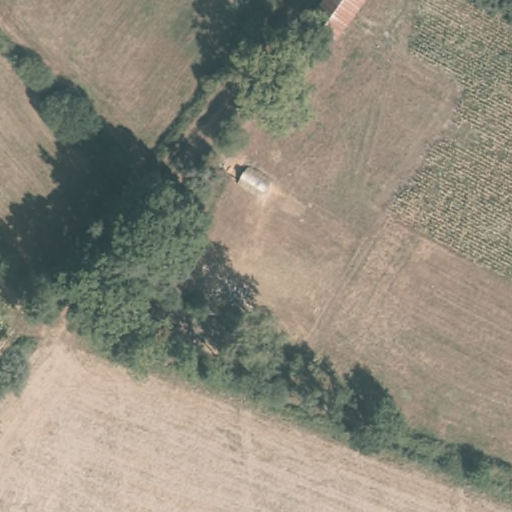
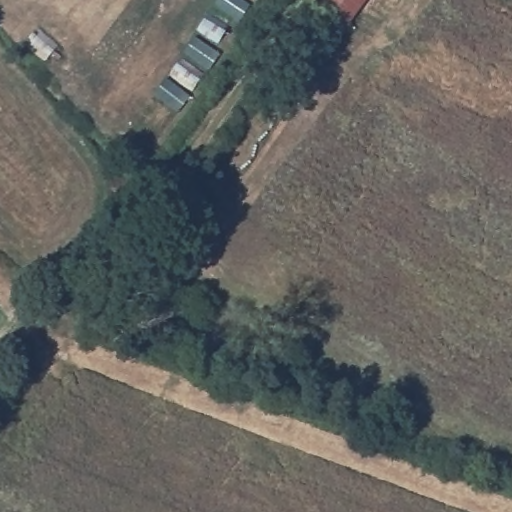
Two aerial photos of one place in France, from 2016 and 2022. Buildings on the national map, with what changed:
unchanged [(310,38),(324,17),(320,12),(328,0),(367,0),(332,52),(310,38)]

